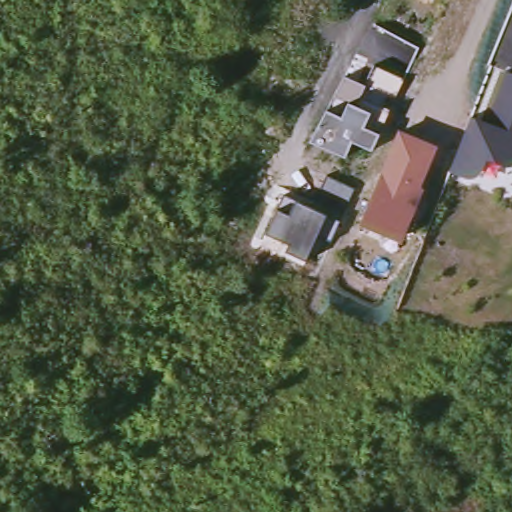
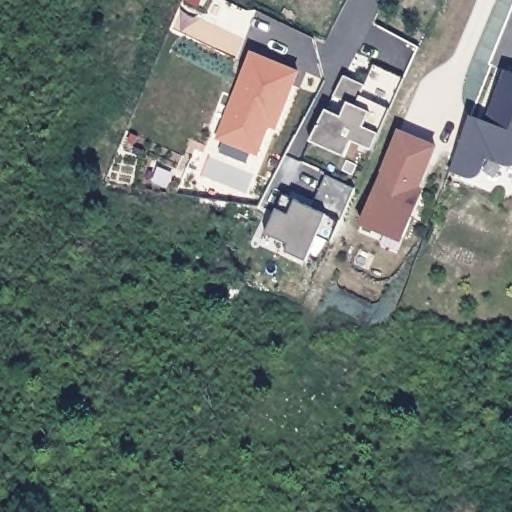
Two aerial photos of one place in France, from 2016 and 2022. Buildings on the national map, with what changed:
new [(300,71),(277,129),(269,126),(257,155),(217,139),(252,51),(300,71)]
unchanged [(389,107),(377,134),(372,149),(351,139),(344,155),(310,140),(325,110),(344,74),(364,84),(372,63),(404,77),(389,107)]
unchanged [(489,124),(508,73),(512,74),(512,165),(509,165),(506,164),(490,158),(485,170),(485,171),(483,174),(481,175),(479,177),(475,177),(472,178),(470,178),(467,178),(453,173),(474,119),(489,124)]
unchanged [(435,145),(419,187),(422,189),(412,214),(400,242),(357,225),(369,197),(378,176),(397,130),(435,145)]
unchanged [(339,220),(329,241),(317,232),(305,260),(285,252),(287,243),(265,233),(275,209),(280,192),(311,205),(324,175),(353,187),(339,220)]

